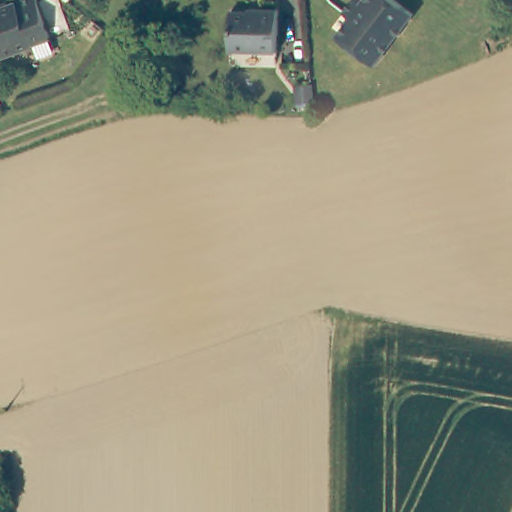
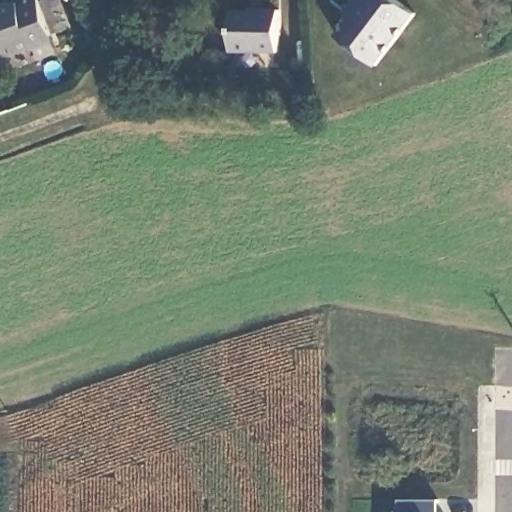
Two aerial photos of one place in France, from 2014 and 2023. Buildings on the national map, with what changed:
unchanged [(47,33),(47,34),(22,44),(23,49),(0,57),(0,6),(17,0),(35,0),(59,0),(68,26),(47,33)]
unchanged [(373,66),(330,34),(346,16),(337,10),(346,0),(355,0),(357,1),(358,0),(392,0),(412,14),(373,66)]
unchanged [(277,50),(230,50),(231,8),(277,8),(277,50)]
new [(438,502),(438,512),(400,512),(399,501),(438,502)]

